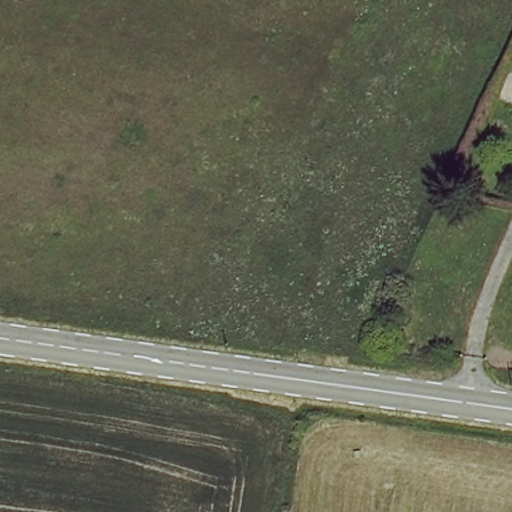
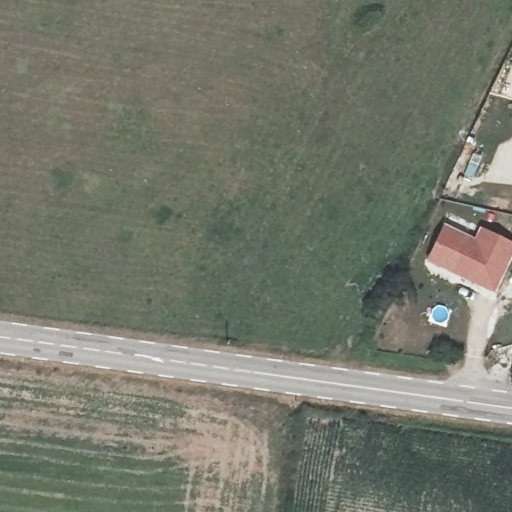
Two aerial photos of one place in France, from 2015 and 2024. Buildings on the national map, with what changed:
new [(427,260),(444,224),(475,239),(480,228),(512,244),(512,255),(493,292),(427,260)]

